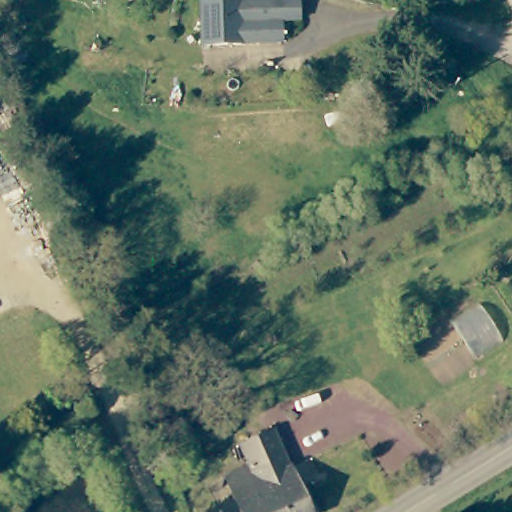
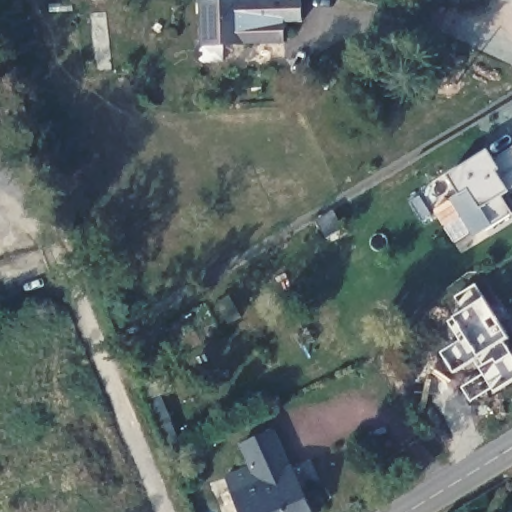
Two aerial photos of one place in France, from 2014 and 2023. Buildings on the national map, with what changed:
unchanged [(203,42),(201,0),(243,0),(243,41),(203,42)]
unchanged [(300,19),(284,20),(282,39),(243,41),(243,0),(300,0),(300,19)]
new [(501,197),(512,214),(474,238),(449,200),(459,193),(448,176),(488,150),(494,159),(512,146),(512,190),(510,192),(501,197)]
new [(164,377),(172,390),(160,397),(179,446),(167,451),(148,400),(143,386),(164,377)]
unchanged [(242,444),(274,432),(290,469),(295,467),(313,512),(241,512),(225,476),(250,466),(242,444)]

